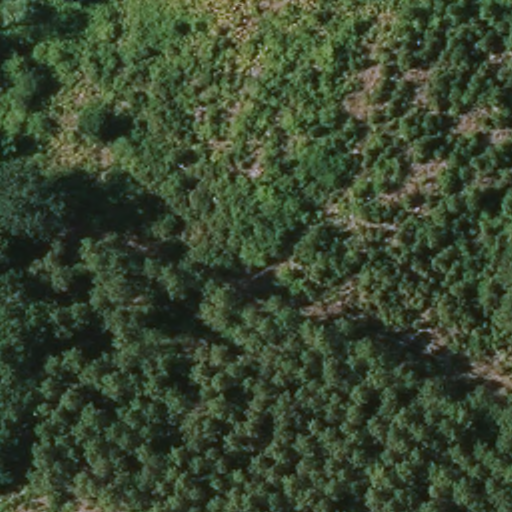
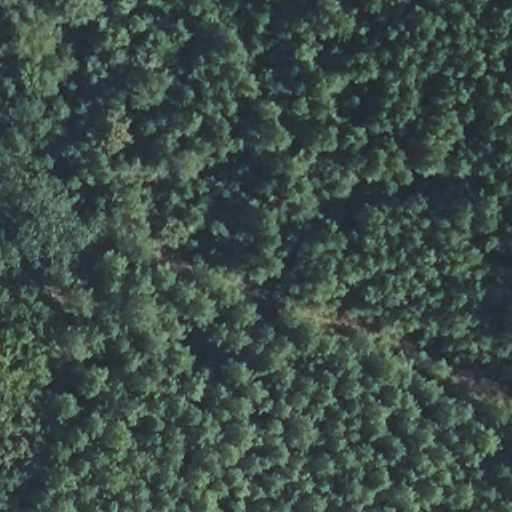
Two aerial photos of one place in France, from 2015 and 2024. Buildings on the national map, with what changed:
[]

